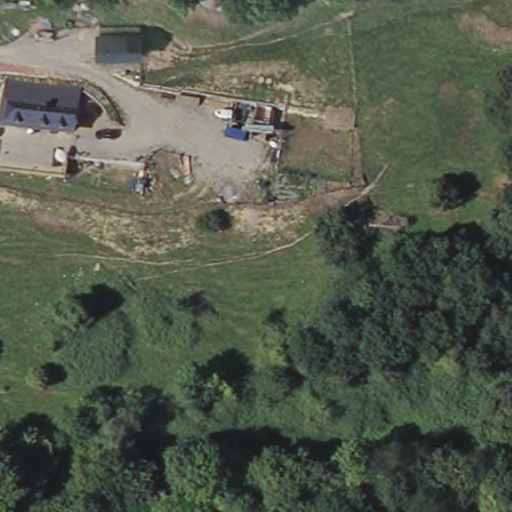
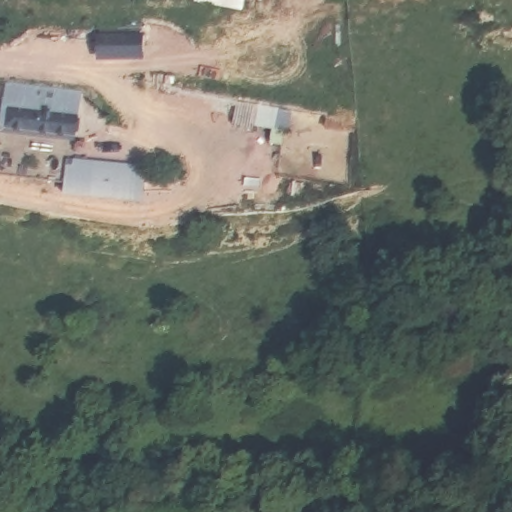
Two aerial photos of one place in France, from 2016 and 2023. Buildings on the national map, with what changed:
unchanged [(98,57),(96,29),(143,28),(143,55),(98,57)]
unchanged [(3,132),(9,80),(81,87),(75,140),(3,132)]
new [(257,105),(295,109),(291,133),(255,126),(257,105)]
new [(67,157),(146,166),(144,201),(66,195),(67,157)]

